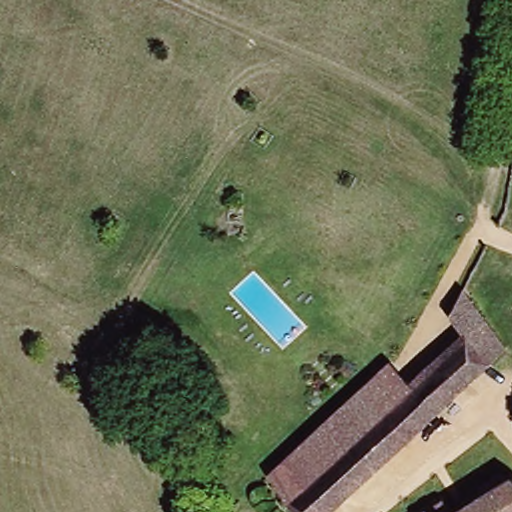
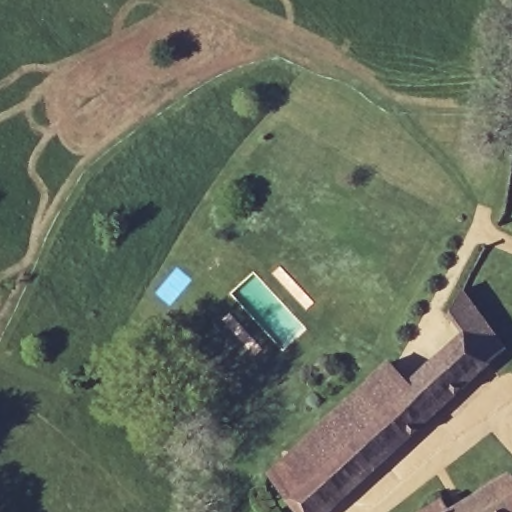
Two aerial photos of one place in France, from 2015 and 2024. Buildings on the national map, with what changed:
unchanged [(502,352),(337,512),(299,512),(268,478),(391,363),(412,387),(466,337),(449,311),(462,290),(502,352)]
unchanged [(506,482),(512,487),(512,512),(465,512),(506,482)]
unchanged [(431,508),(433,512),(426,512),(431,508)]

